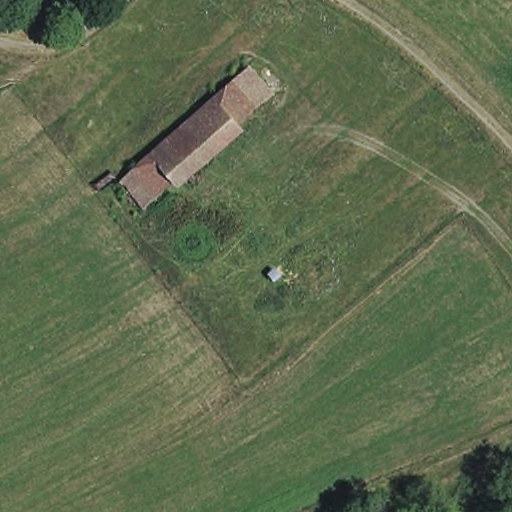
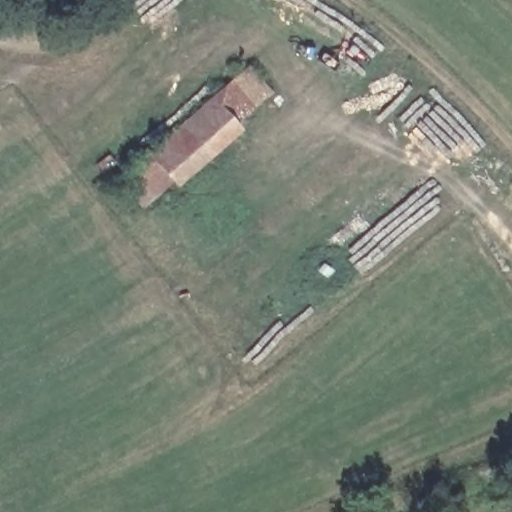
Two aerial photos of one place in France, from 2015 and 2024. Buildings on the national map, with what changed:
unchanged [(145,215),(118,186),(187,128),(213,105),(225,95),(250,73),(252,74),(273,98),(236,131),(210,154),(145,215)]

